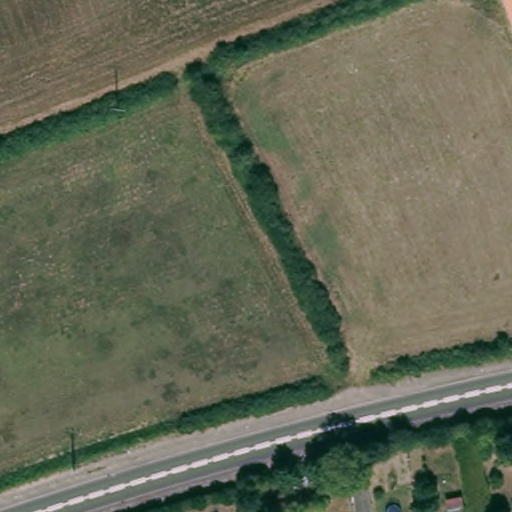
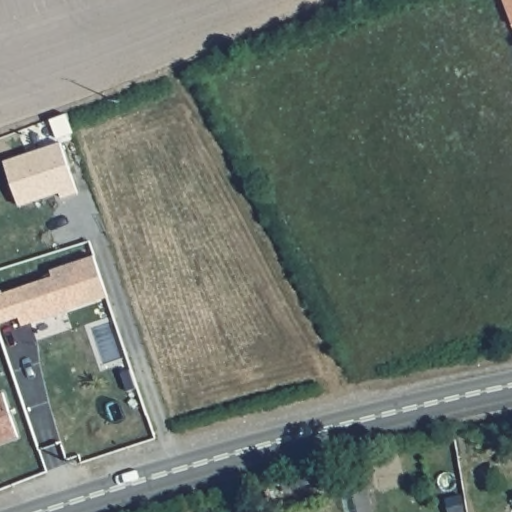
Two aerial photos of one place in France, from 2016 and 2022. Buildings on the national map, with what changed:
unchanged [(511,19),(504,0),(512,0),(512,23),(511,19)]
new [(60,142),(77,192),(61,197),(59,191),(19,205),(3,161),(60,142)]
new [(51,270),(94,255),(108,296),(22,325),(19,316),(0,323),(0,294),(53,276),(51,270)]
new [(17,435),(0,441),(0,394),(3,393),(17,435)]

